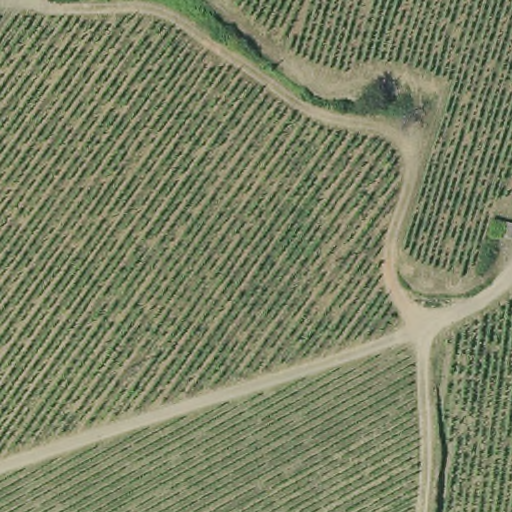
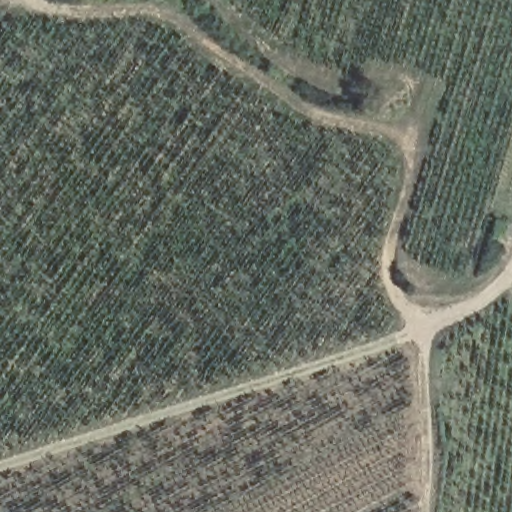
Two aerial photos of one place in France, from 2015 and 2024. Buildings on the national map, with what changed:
unchanged [(510,239),(488,235),(491,220),(512,224),(512,228),(510,239)]

